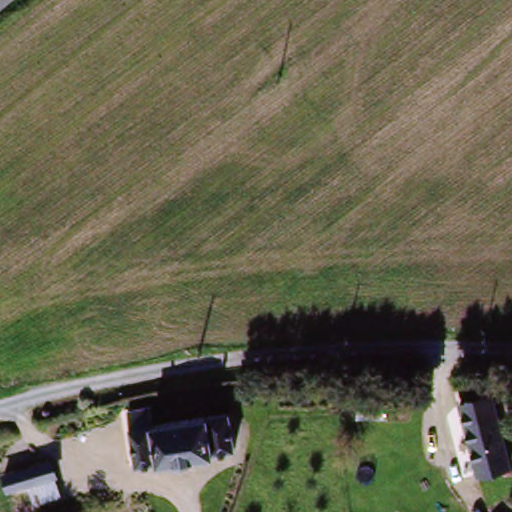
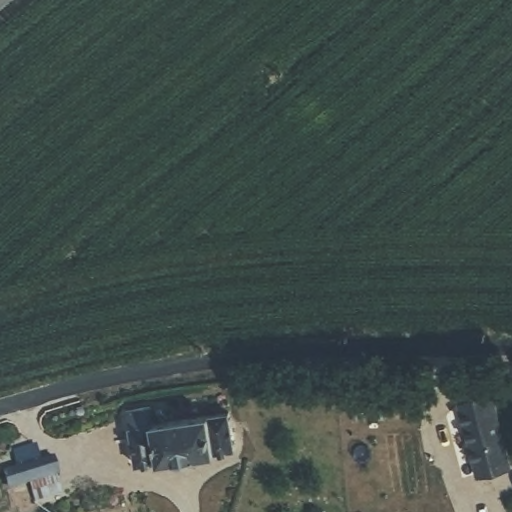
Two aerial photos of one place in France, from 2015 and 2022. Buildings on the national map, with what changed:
unchanged [(497,387),(512,443),(512,461),(482,471),(463,398),(497,387)]
unchanged [(124,426),(126,426),(124,407),(149,404),(152,422),(226,413),(230,450),(129,462),(124,426)]
unchanged [(55,456),(59,472),(10,485),(6,468),(55,456)]

